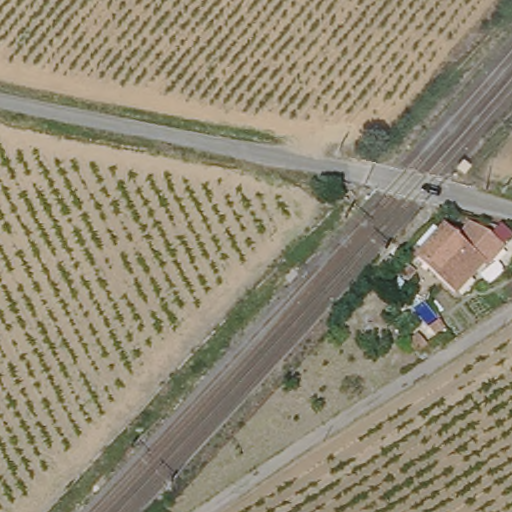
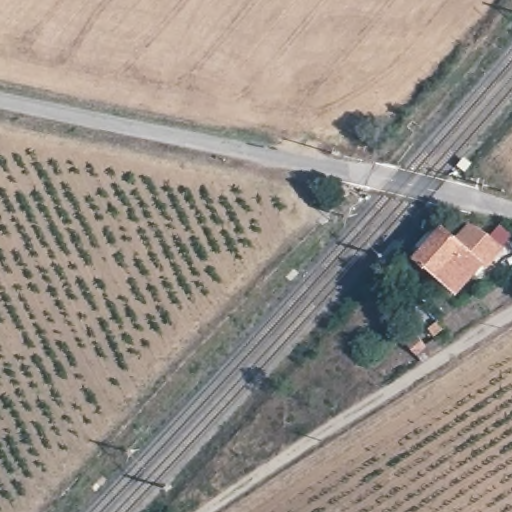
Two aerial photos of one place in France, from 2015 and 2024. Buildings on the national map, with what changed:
unchanged [(470,238),(460,229),(470,220),(480,229),(470,238)]
unchanged [(458,288),(421,254),(444,231),(481,266),(458,288)]
unchanged [(430,330),(438,326),(443,332),(436,338),(430,330)]

